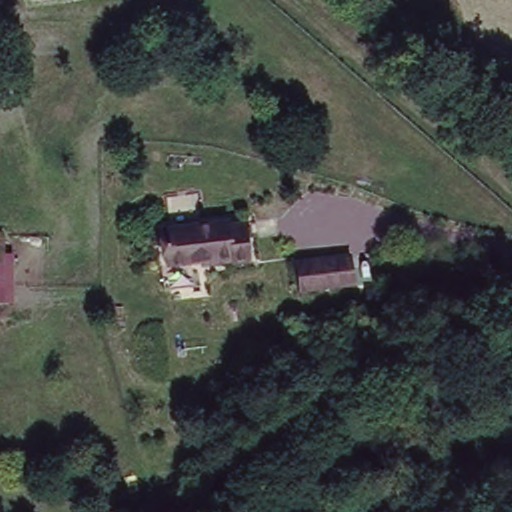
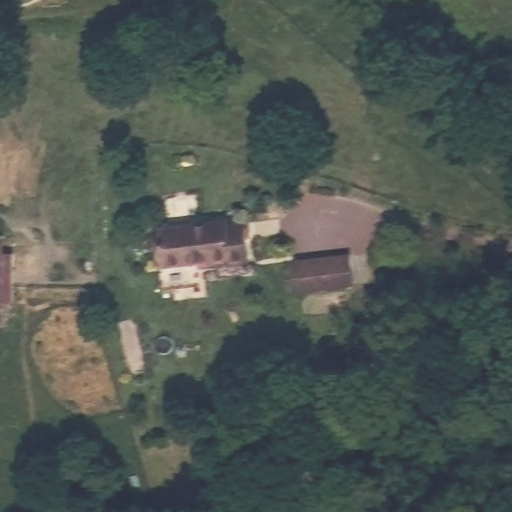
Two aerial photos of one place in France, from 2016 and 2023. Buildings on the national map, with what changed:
unchanged [(228,218),(229,221),(244,219),(250,257),(232,259),(230,254),(191,261),(195,285),(165,290),(161,265),(167,265),(162,229),(228,218)]
unchanged [(0,300),(0,251),(10,251),(6,300),(0,300)]
unchanged [(355,251),(359,281),(305,290),(300,260),(355,251)]
unchanged [(402,284),(402,304),(371,305),(371,285),(402,284)]

